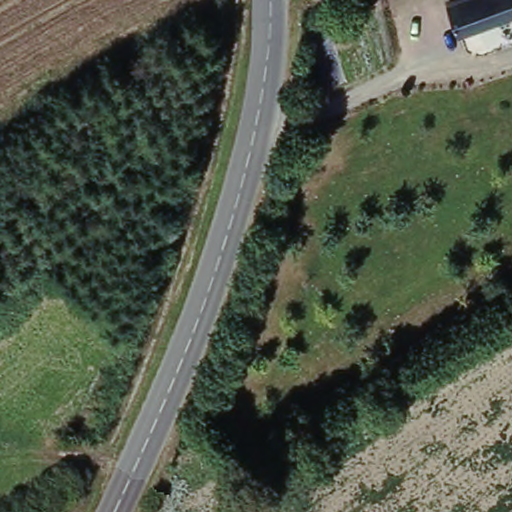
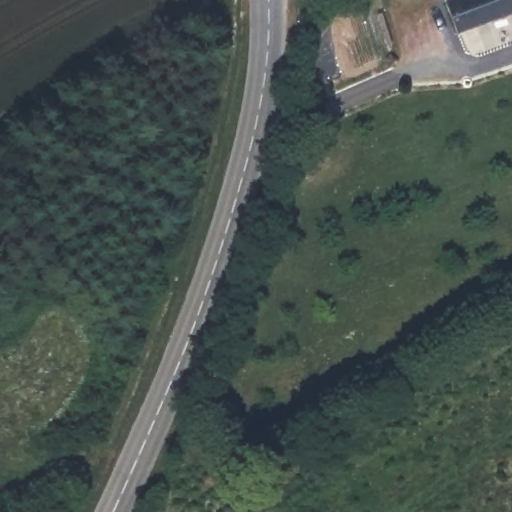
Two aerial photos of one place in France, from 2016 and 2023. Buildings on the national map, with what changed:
unchanged [(512,14),(462,33),(450,5),(464,0),(512,0),(512,14)]

